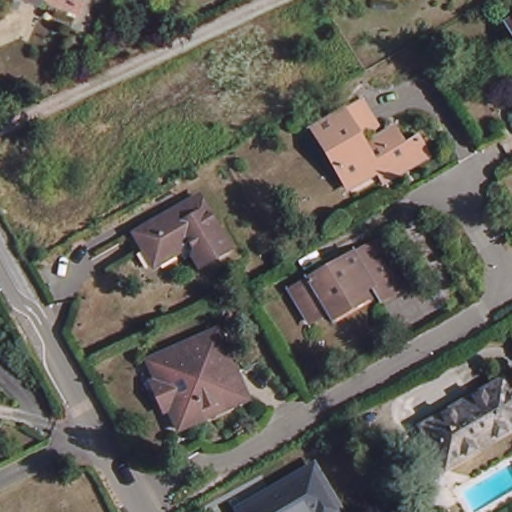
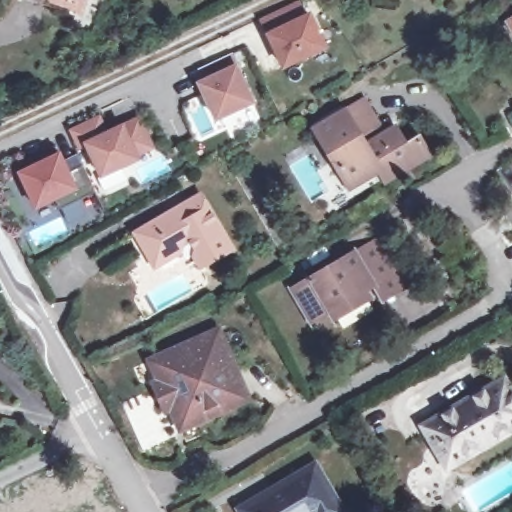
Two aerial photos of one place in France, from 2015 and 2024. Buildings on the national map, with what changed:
unchanged [(33,0),(41,0),(40,3),(33,0)]
new [(297,1),(305,18),(309,16),(324,49),(283,68),(259,19),(297,1)]
unchanged [(508,23),(512,20),(512,30),(508,23)]
unchanged [(261,36),(283,83),(228,109),(206,63),(261,36)]
unchanged [(421,152),(376,178),(347,195),(308,129),(338,111),(338,110),(357,98),(371,123),(352,135),(358,145),(388,127),(399,146),(413,138),(421,152)]
new [(100,121),(108,137),(140,122),(154,151),(138,159),(139,163),(103,180),(88,148),(81,151),(73,135),(100,121)]
new [(58,155),(66,173),(80,166),(93,193),(58,210),(53,199),(34,208),(18,174),(58,155)]
unchanged [(138,251),(128,234),(166,214),(168,217),(179,210),(178,206),(194,196),(226,250),(196,268),(188,257),(181,262),(176,253),(156,265),(149,269),(138,251)]
unchanged [(339,320),(334,311),(316,322),(296,289),(382,238),(399,267),(412,286),(385,302),(376,286),(368,291),(373,300),(339,320)]
unchanged [(179,427),(170,406),(158,380),(148,359),(218,327),(251,394),(223,407),(208,414),(179,427)]
unchanged [(434,446),(422,426),(504,379),(512,392),(512,431),(459,461),(447,469),(434,446)]
unchanged [(235,510),(309,467),(336,512),(236,512),(235,510)]

